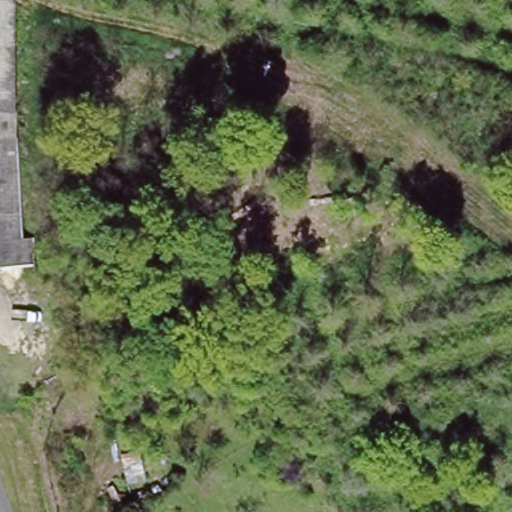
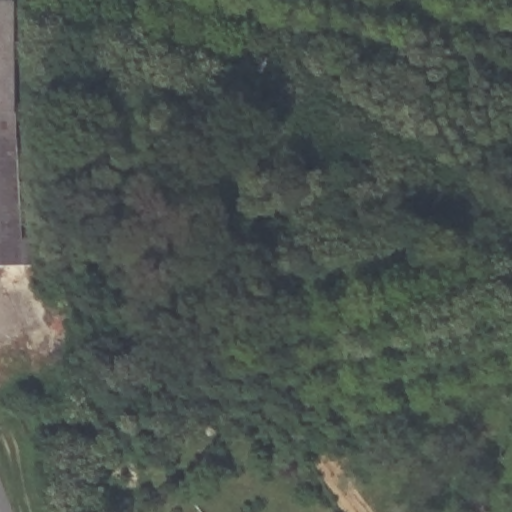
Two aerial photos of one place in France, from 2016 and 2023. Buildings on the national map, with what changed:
unchanged [(0,0),(17,0),(31,260),(0,261),(0,0)]

